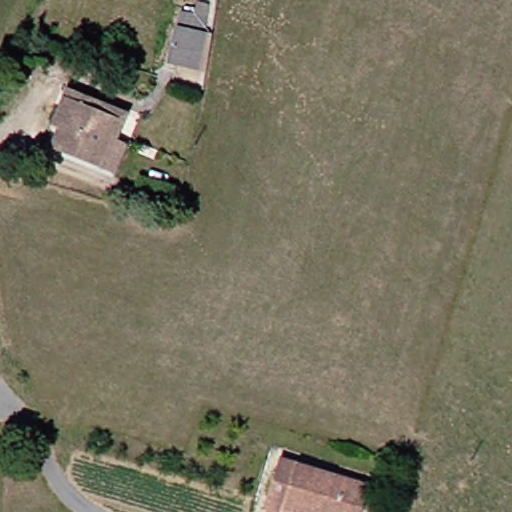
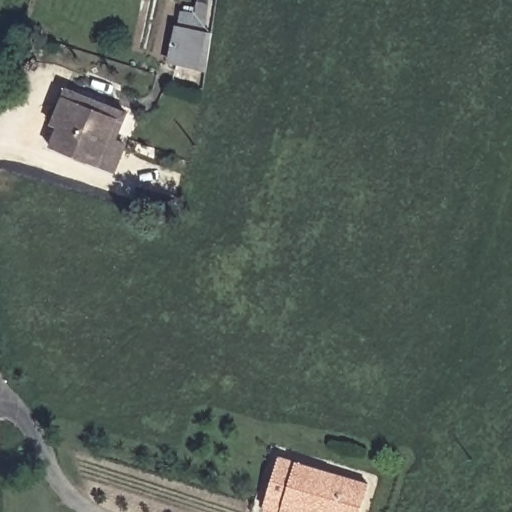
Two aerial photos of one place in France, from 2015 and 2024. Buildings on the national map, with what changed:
unchanged [(187,69),(170,62),(178,31),(182,12),(192,13),(194,0),(207,0),(202,36),(207,37),(202,63),(189,60),(187,69)]
unchanged [(117,175),(98,168),(54,148),(62,127),(55,124),(70,93),(122,117),(127,120),(117,144),(129,150),(117,175)]
unchanged [(267,512),(268,510),(284,457),(301,462),(373,483),(363,512),(267,512)]

